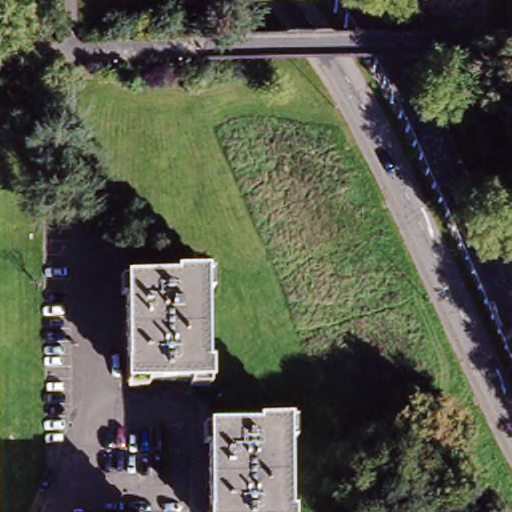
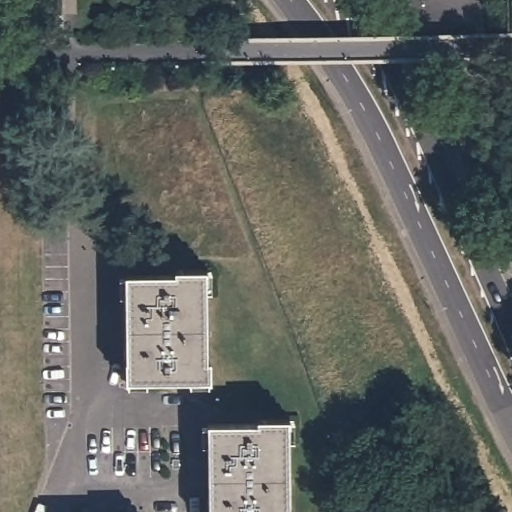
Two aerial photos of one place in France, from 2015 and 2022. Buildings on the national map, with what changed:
unchanged [(209,275),(208,366),(212,366),(211,386),(126,385),(125,367),(128,367),(128,278),(177,279),(178,274),(209,275)]
unchanged [(209,426),(258,426),(258,421),(290,421),(290,512),(209,512),(209,426)]

